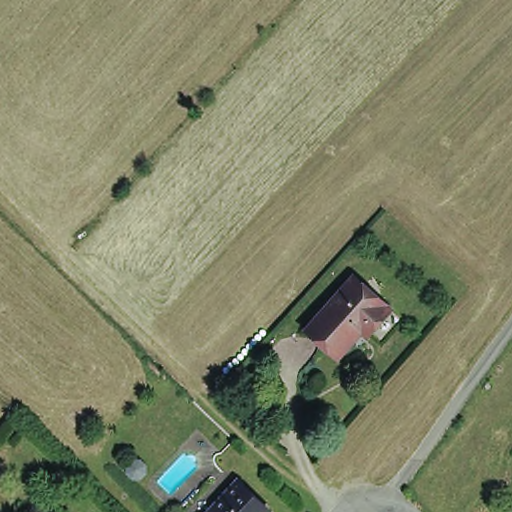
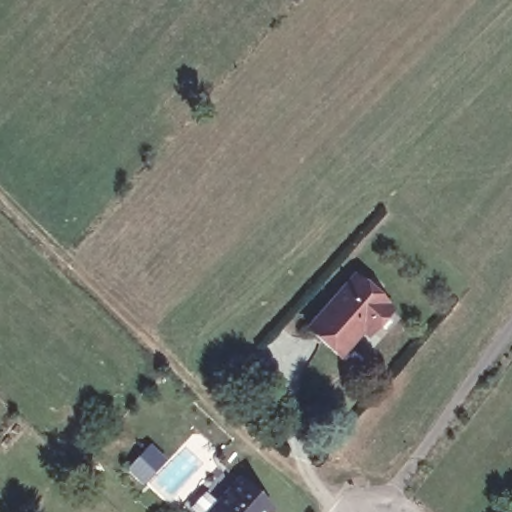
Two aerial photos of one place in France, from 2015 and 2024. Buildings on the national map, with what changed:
unchanged [(352,271),(353,272),(367,285),(322,336),(308,324),(327,300),(352,271)]
unchanged [(367,285),(390,304),(367,330),(361,326),(340,351),(322,336),(367,285)]
unchanged [(238,479),(270,508),(267,512),(209,512),(233,485),(238,479)]

